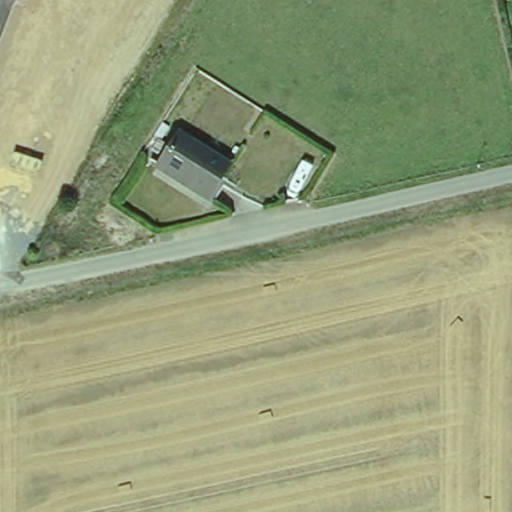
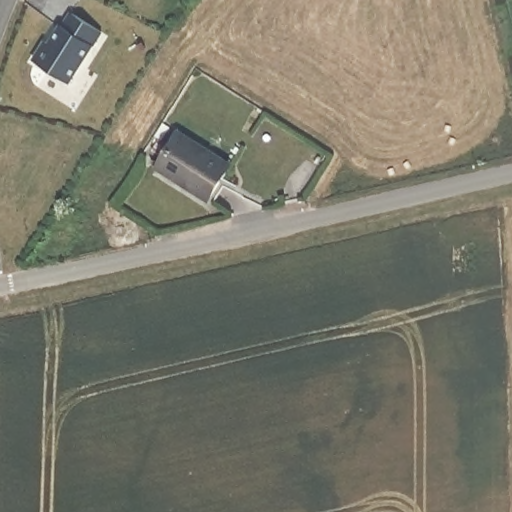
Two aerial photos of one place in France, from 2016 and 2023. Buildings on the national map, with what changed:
new [(44,44),(49,46),(60,28),(61,29),(70,15),(100,34),(68,85),(33,62),(44,44)]
unchanged [(204,202),(151,168),(174,131),(228,165),(204,202)]

